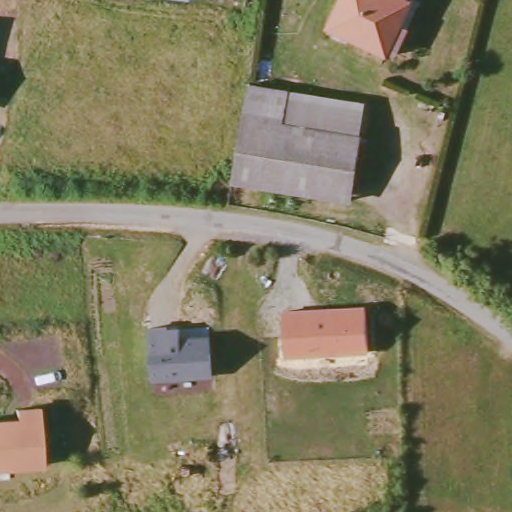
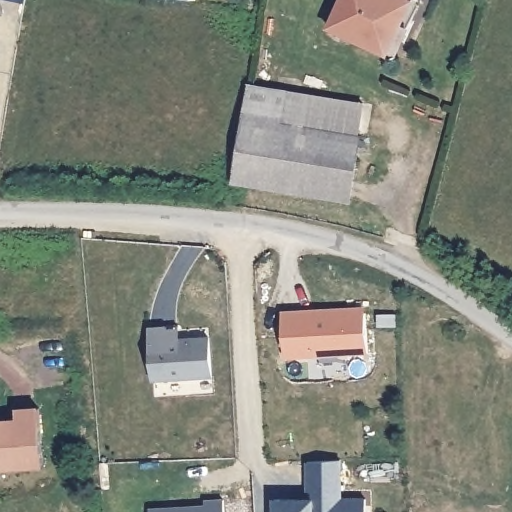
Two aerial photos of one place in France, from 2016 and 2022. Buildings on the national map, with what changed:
unchanged [(389,48),(382,45),(381,47),(324,21),(334,0),(409,0),(412,1),(389,48)]
unchanged [(351,199),(232,180),(248,84),(287,91),(283,123),(361,135),(351,199)]
unchanged [(366,103),(361,135),(283,123),(287,91),(366,103)]
unchanged [(366,304),(369,352),(286,357),(284,309),(366,304)]
unchanged [(180,324),(181,337),(211,335),(213,378),(153,381),(148,326),(180,324)]
unchanged [(15,408),(38,406),(43,464),(0,467),(0,419),(16,418),(15,408)]
new [(343,498),(366,498),(367,512),(267,512),(267,497),(275,497),(308,497),(306,461),(341,460),(343,498)]
new [(205,498),(224,498),(225,512),(152,512),(152,507),(206,505),(205,498)]

